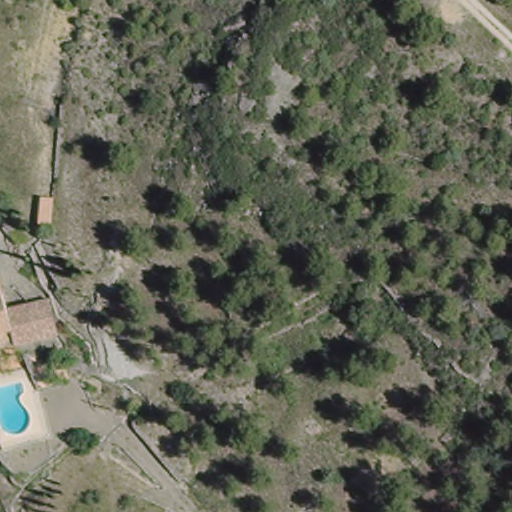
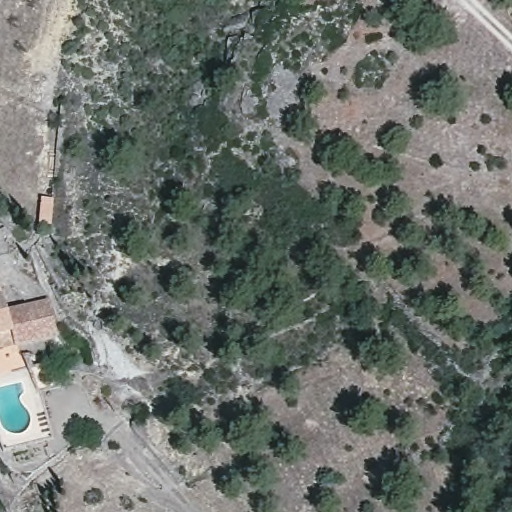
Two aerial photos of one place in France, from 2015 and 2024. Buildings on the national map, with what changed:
unchanged [(30,304),(50,299),(54,315),(60,334),(40,339),(17,346),(0,351),(0,301),(6,317),(32,310),(30,304)]

